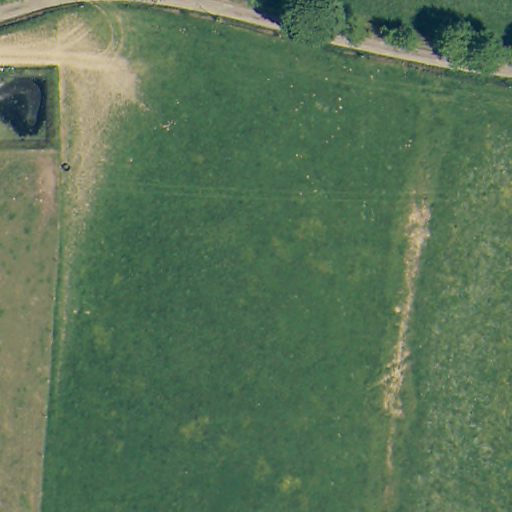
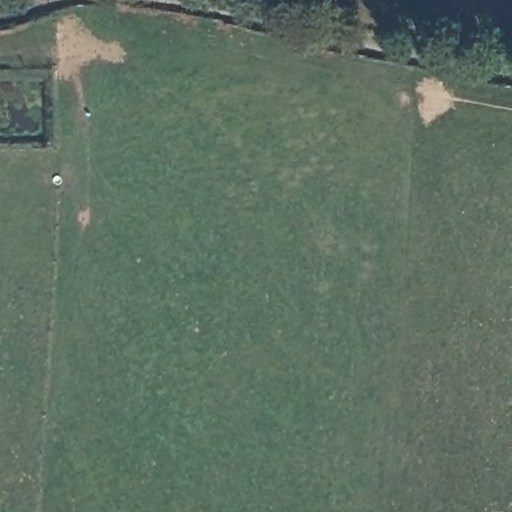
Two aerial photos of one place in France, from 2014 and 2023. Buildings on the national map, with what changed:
[]

